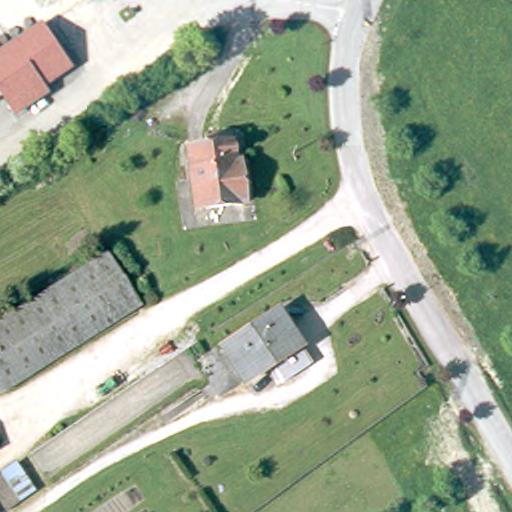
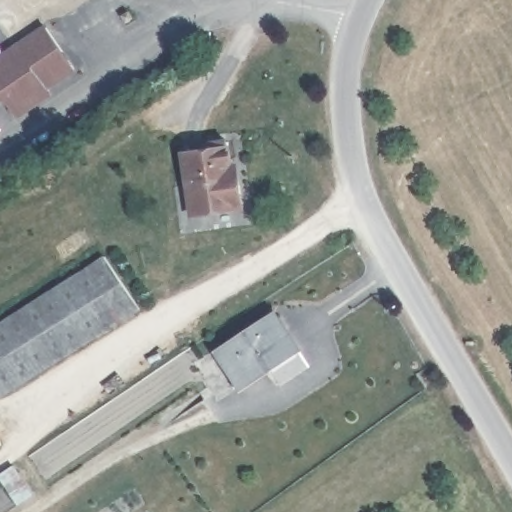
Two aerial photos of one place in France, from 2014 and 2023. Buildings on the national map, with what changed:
unchanged [(50,25),(77,66),(49,85),(54,91),(20,114),(5,94),(0,97),(0,58),(50,25)]
unchanged [(235,187),(241,186),(244,210),(194,215),(189,170),(187,154),(207,152),(207,146),(229,144),(231,144),(235,187)]
unchanged [(106,256),(137,310),(0,397),(0,322),(106,256)]
unchanged [(222,349),(277,314),(301,351),(247,386),(222,349)]
unchanged [(37,496),(22,506),(0,476),(0,474),(17,464),(37,496)]

